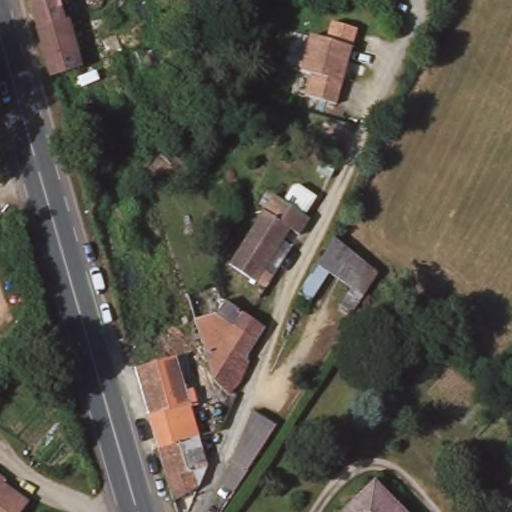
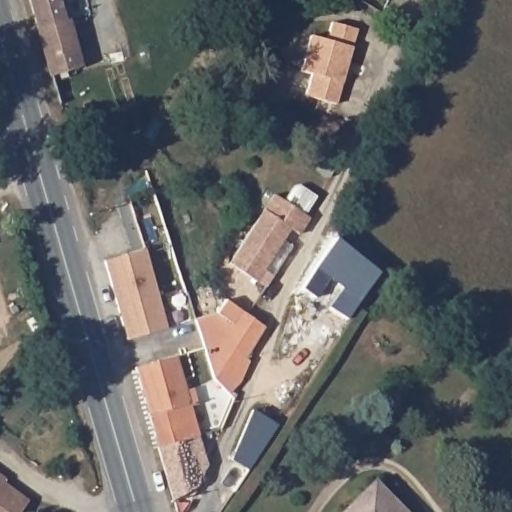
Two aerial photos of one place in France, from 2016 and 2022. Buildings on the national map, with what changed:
unchanged [(61,19),(64,19),(77,67),(46,76),(24,0),(55,0),(61,19)]
unchanged [(314,35),(356,47),(339,105),(308,99),(313,73),(306,72),(314,35)]
unchanged [(264,273),(256,268),(248,281),(222,264),(265,195),(281,205),(291,212),(301,218),(291,235),(281,229),(273,240),(282,245),(264,273)]
unchanged [(327,274),(306,303),(296,296),(312,265),(331,238),(374,273),(359,297),(347,315),(336,308),(349,290),(327,274)]
new [(141,252),(166,329),(127,340),(105,262),(141,252)]
unchanged [(213,319),(221,306),(260,332),(258,337),(241,363),(246,366),(238,387),(226,401),(210,383),(191,325),(213,319)]
unchanged [(183,359),(192,392),(189,392),(194,410),(185,412),(194,442),(154,454),(131,374),(170,363),(183,359)]
unchanged [(249,411),(272,426),(243,470),(229,461),(249,411)]
unchanged [(194,442),(202,471),(193,492),(169,505),(154,454),(194,442)]
unchanged [(23,512),(0,512),(0,475),(34,500),(23,512)]
unchanged [(400,512),(339,512),(370,482),(400,512)]

